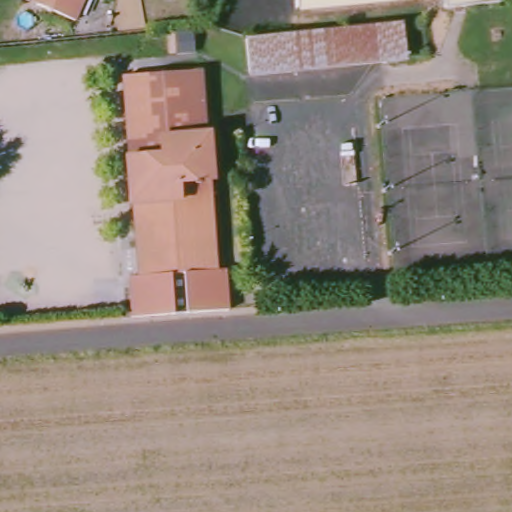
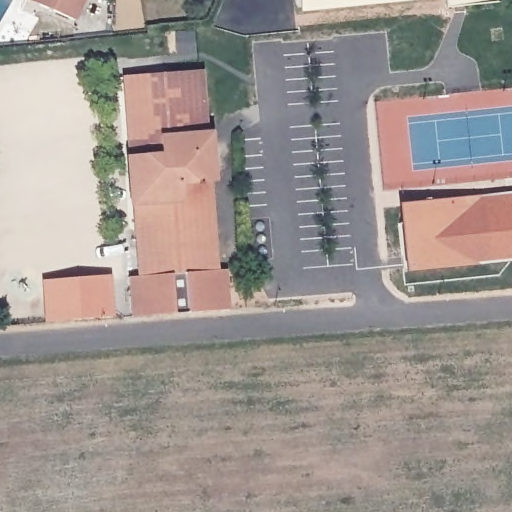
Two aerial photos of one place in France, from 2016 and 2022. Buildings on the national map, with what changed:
unchanged [(31,0),(88,0),(78,25),(41,9),(29,4),(31,0)]
unchanged [(295,11),(294,0),(397,0),(295,11)]
unchanged [(441,0),(498,0),(499,1),(499,6),(444,12),(443,9),(442,5),(441,0)]
demolished [(404,23),(409,57),(252,75),(248,39),(404,23)]
unchanged [(203,113),(213,248),(223,247),(226,285),(128,293),(125,255),(134,254),(120,55),(198,48),(203,113)]
new [(512,192),(512,261),(404,272),(399,204),(512,192)]

